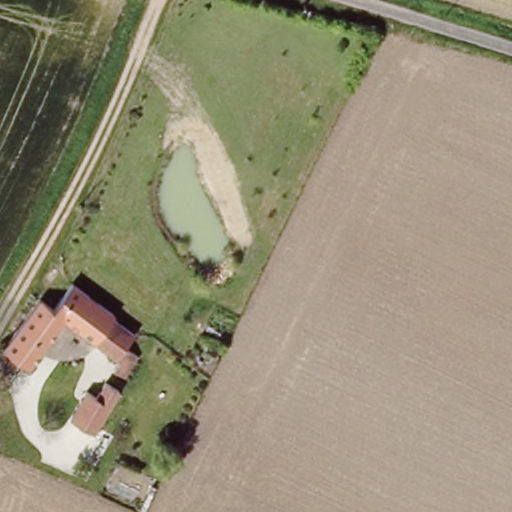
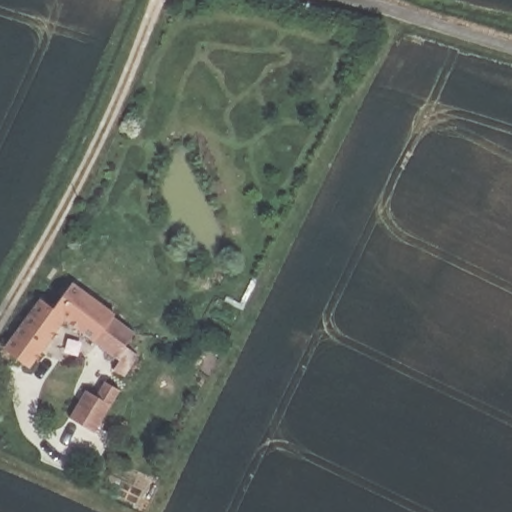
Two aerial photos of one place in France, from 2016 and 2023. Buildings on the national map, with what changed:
unchanged [(136,347),(119,368),(110,360),(114,355),(66,316),(31,359),(25,354),(20,358),(1,343),(8,330),(39,292),(49,301),(69,277),(129,326),(121,335),(136,347)]
unchanged [(111,404),(98,430),(71,416),(84,390),(111,404)]

